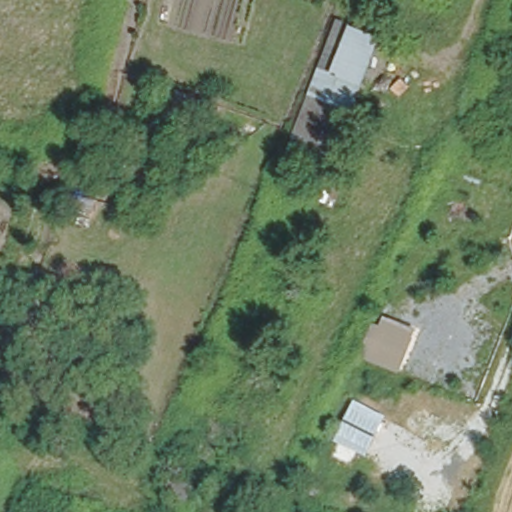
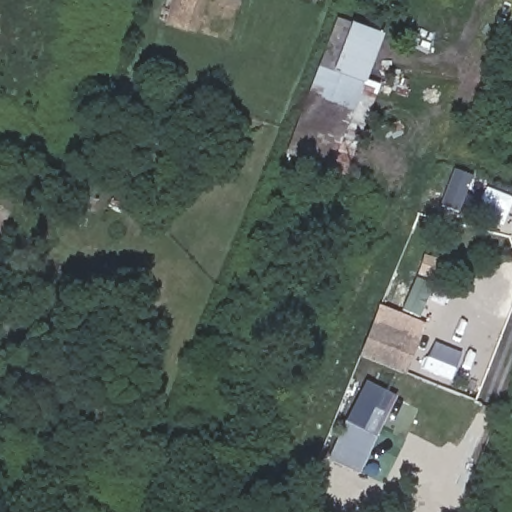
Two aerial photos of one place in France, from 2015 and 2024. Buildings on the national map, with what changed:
unchanged [(383,33),(342,126),(302,112),(339,16),(383,33)]
unchanged [(189,95),(172,145),(127,132),(137,102),(160,108),(170,87),(189,95)]
unchanged [(362,346),(373,319),(379,322),(382,316),(415,328),(401,362),(362,346)]
new [(361,475),(329,461),(367,381),(397,396),(361,475)]

